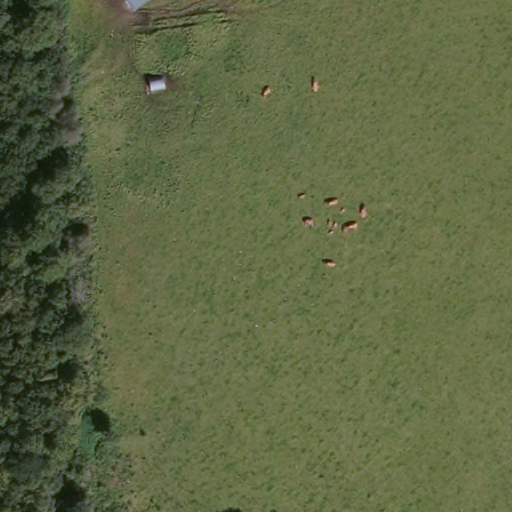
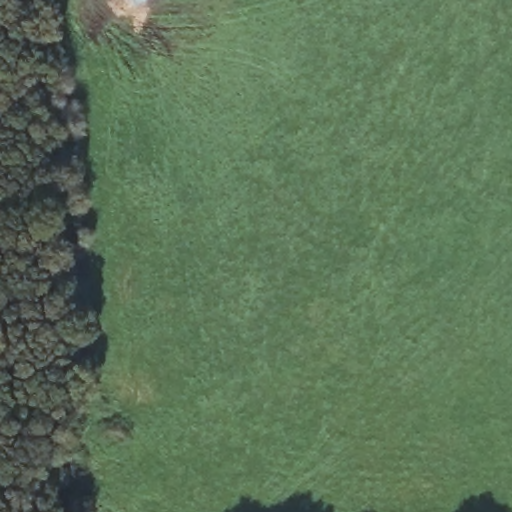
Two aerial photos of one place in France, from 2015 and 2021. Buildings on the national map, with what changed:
unchanged [(133,9),(126,0),(145,0),(133,9)]

